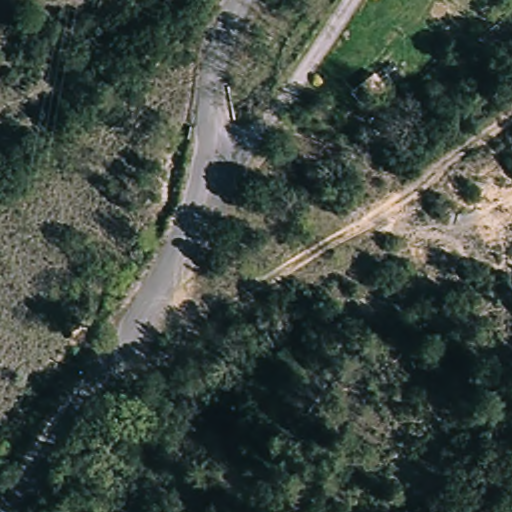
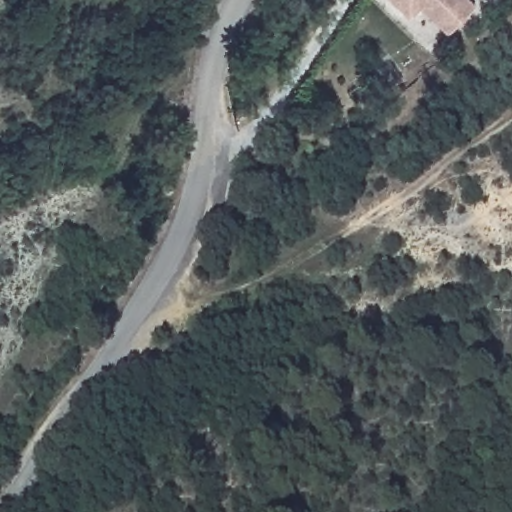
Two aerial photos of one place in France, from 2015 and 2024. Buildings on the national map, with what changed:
new [(476,6),(448,34),(420,7),(410,18),(391,0),(470,0),(476,6)]
unchanged [(374,70),(387,91),(370,101),(357,83),(374,70)]

